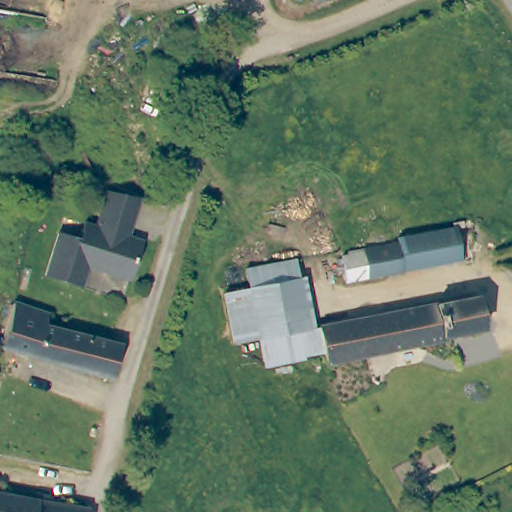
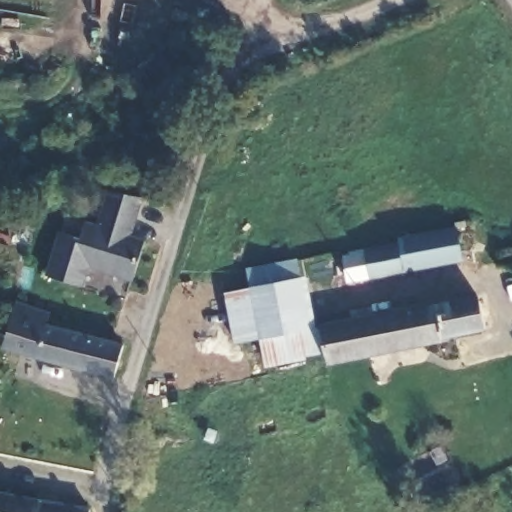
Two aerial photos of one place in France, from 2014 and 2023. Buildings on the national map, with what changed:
unchanged [(142,243),(130,281),(87,267),(80,288),(45,277),(59,233),(81,240),(85,225),(96,228),(109,191),(141,197),(127,238),(142,243)]
unchanged [(460,260),(405,271),(399,242),(398,238),(455,228),(460,260)]
unchanged [(405,271),(344,282),(342,257),(348,256),(347,252),(399,242),(405,271)]
unchanged [(325,352),(265,363),(261,340),(235,345),(225,295),(300,280),(309,328),(320,327),(325,352)]
unchanged [(476,297),(483,329),(446,337),(446,339),(327,363),(325,352),(320,327),(476,297)]
unchanged [(14,303),(49,313),(45,325),(122,345),(112,378),(0,347),(14,303)]
unchanged [(89,509),(88,512),(0,512),(0,493),(89,509)]

